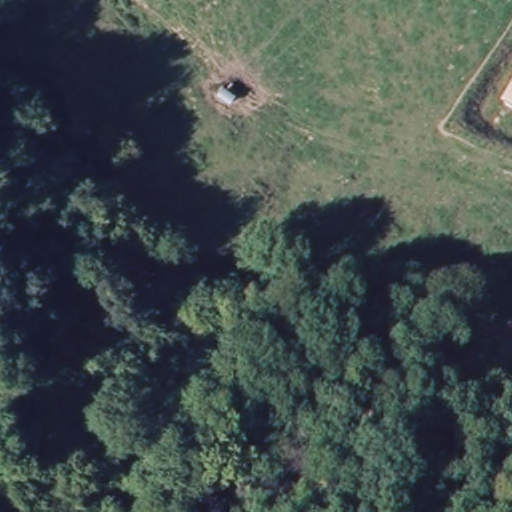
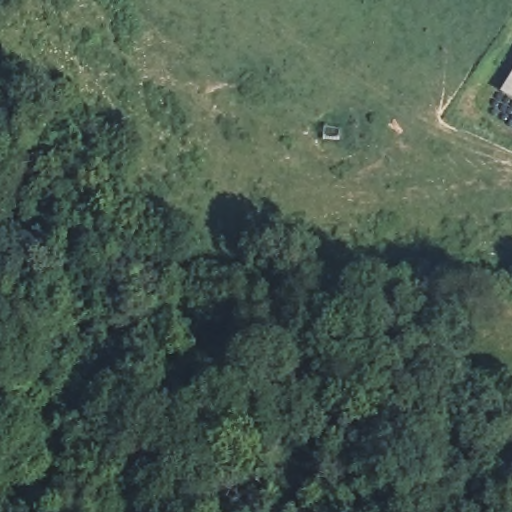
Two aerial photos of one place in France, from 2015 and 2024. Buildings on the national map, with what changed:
unchanged [(512,65),(512,95),(498,85),(512,65)]

